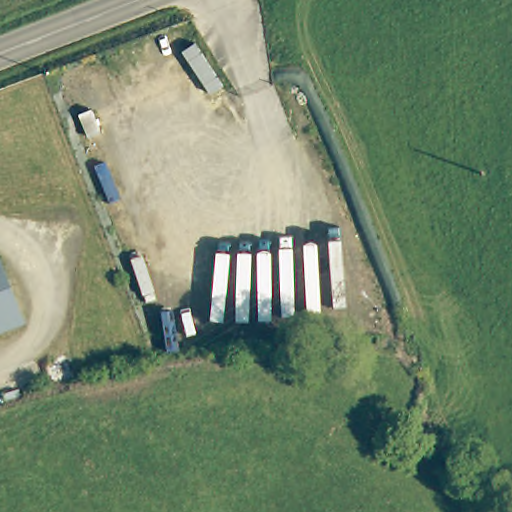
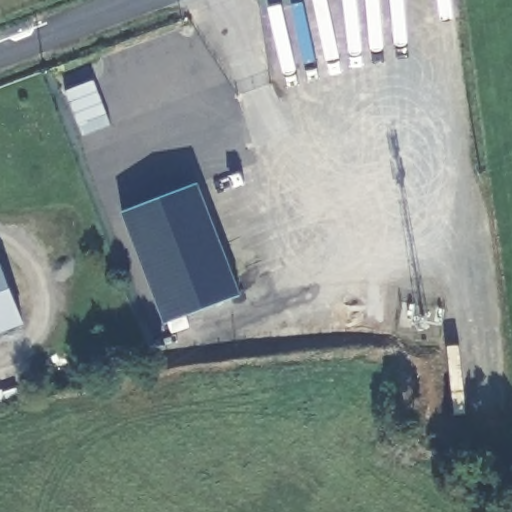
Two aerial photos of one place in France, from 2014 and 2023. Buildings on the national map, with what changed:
new [(95,76),(113,121),(84,132),(67,87),(95,76)]
new [(241,293),(165,322),(122,212),(198,181),(241,293)]
unchanged [(26,324),(0,334),(0,261),(26,324)]

